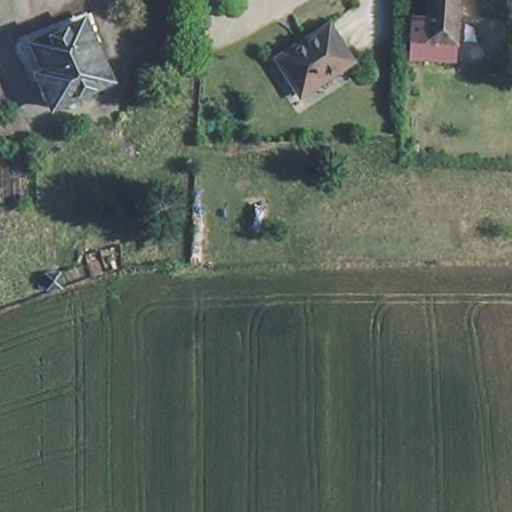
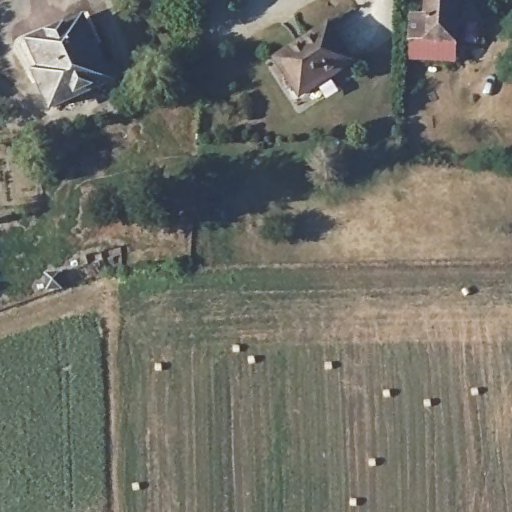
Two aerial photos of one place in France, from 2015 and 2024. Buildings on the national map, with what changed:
unchanged [(414,4),(435,5),(435,0),(465,0),(460,56),(409,52),(414,4)]
unchanged [(40,73),(49,68),(39,46),(67,33),(64,26),(88,15),(114,75),(53,103),(40,73)]
unchanged [(331,20),(354,56),(300,88),(277,51),(331,20)]

